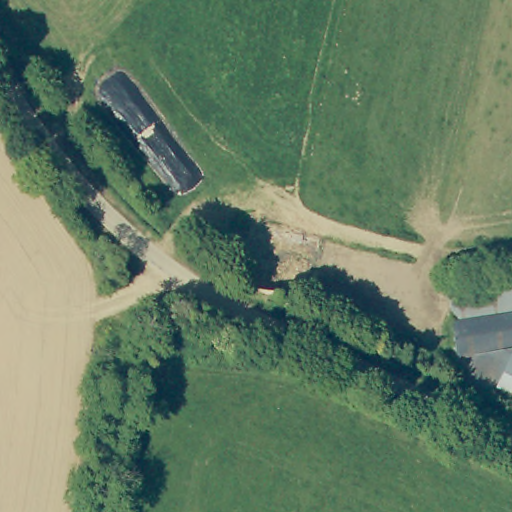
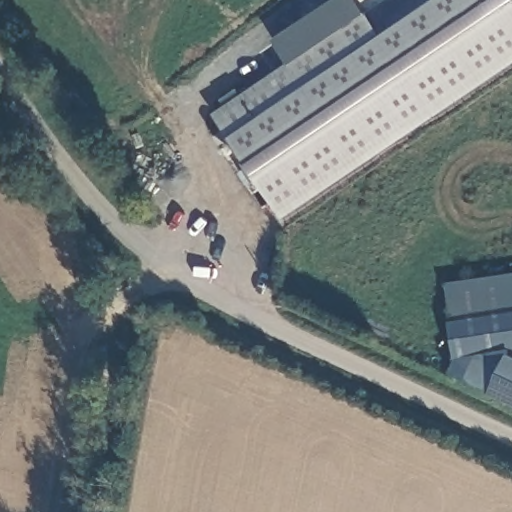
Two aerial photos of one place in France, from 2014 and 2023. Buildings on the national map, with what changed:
new [(356,52),(435,0),(512,0),(512,67),(283,220),(230,137),(212,113),(340,29),(356,52)]
new [(340,29),(286,64),(273,40),(332,0),(357,0),(365,14),(381,36),(356,52),(340,29)]
demolished [(236,288),(246,256),(243,255),(251,219),(320,235),(310,273),(295,270),(290,300),(250,290),(250,291),(236,288)]
unchanged [(445,283),(512,274),(512,350),(509,350),(455,357),(452,335),(445,283)]
unchanged [(491,391),(457,375),(455,357),(509,350),(510,353),(491,391)]
new [(509,350),(512,350),(512,355),(510,353),(509,350)]
unchanged [(510,353),(512,355),(512,401),(491,391),(510,353)]

